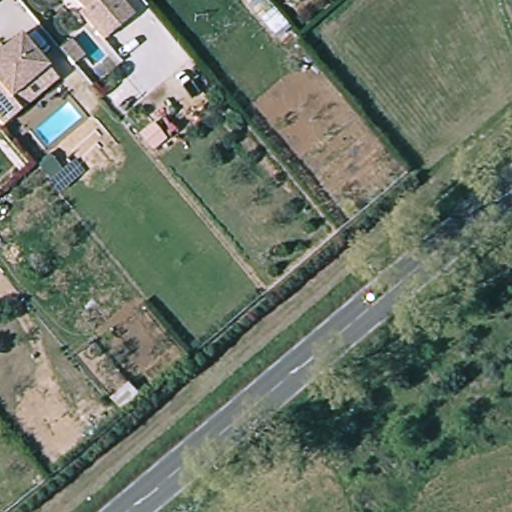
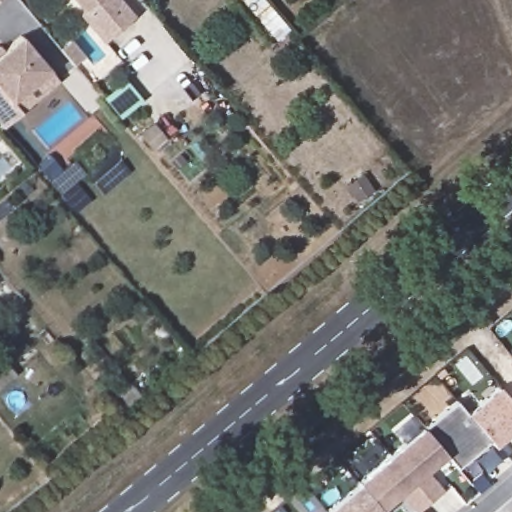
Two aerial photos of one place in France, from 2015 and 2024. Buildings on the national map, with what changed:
unchanged [(81,9),(85,5),(80,0),(124,0),(134,12),(104,37),(81,9)]
new [(279,40),(243,0),(267,0),(292,29),(279,40)]
unchanged [(21,35),(49,69),(12,100),(22,112),(3,128),(0,124),(0,53),(21,35)]
unchanged [(61,50),(71,42),(85,58),(75,66),(61,50)]
new [(54,158),(64,170),(74,161),(84,174),(75,182),(91,202),(77,214),(40,169),(54,158)]
new [(512,403),(512,427),(505,434),(507,437),(494,447),(489,440),(467,414),(499,387),(512,403)]
new [(455,401),(467,414),(489,440),(456,468),(445,454),(424,429),(455,401)]
new [(423,428),(424,429),(445,454),(426,471),(443,491),(430,502),(391,456),(423,428)]
new [(391,456),(430,502),(417,512),(415,512),(399,493),(380,509),(360,486),(358,483),(391,456)]
new [(360,486),(380,509),(381,510),(379,512),(329,512),(360,486)]

